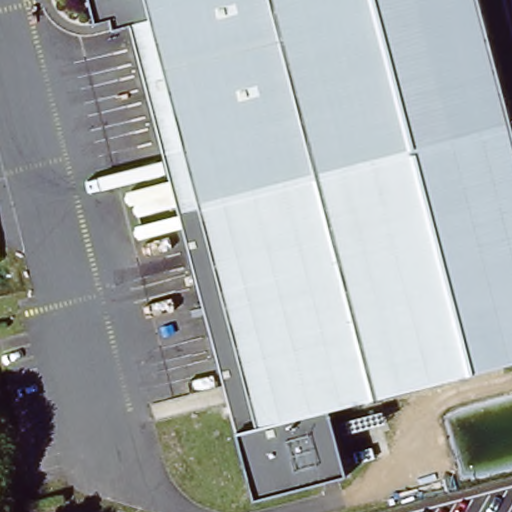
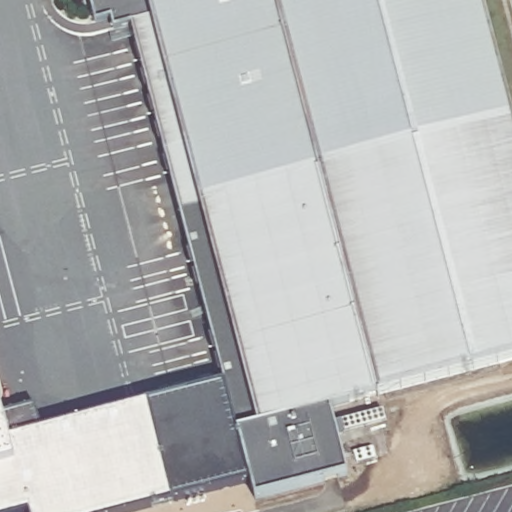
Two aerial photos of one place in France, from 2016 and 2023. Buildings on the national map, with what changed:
unchanged [(512,115),(512,190),(361,227),(196,268),(137,26),(120,31),(115,15),(100,19),(95,0),(482,0),(512,115)]
unchanged [(200,288),(196,268),(361,227),(512,190),(512,275),(410,279),(200,288)]
unchanged [(200,288),(410,279),(512,275),(512,364),(335,409),(341,435),(234,423),(200,288)]
new [(28,512),(27,511),(24,512),(0,512),(0,403),(5,419),(35,408),(41,430),(224,385),(234,423),(247,481),(135,512),(28,512)]
unchanged [(350,472),(252,497),(234,423),(341,435),(350,472)]

